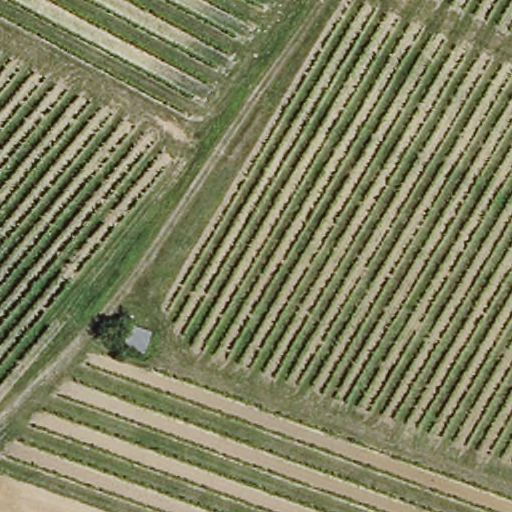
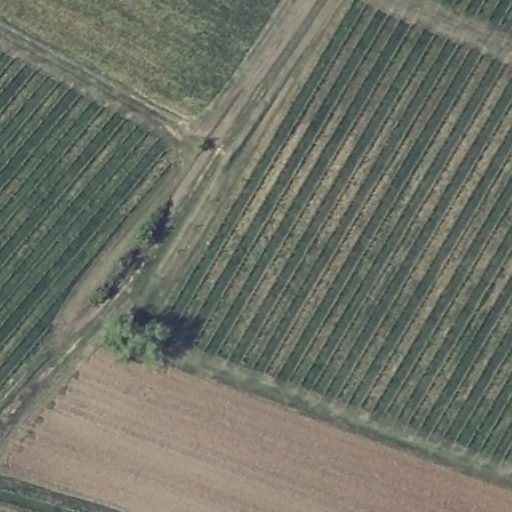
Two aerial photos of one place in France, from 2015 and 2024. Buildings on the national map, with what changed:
unchanged [(121,321),(160,336),(150,358),(112,345),(121,321)]

